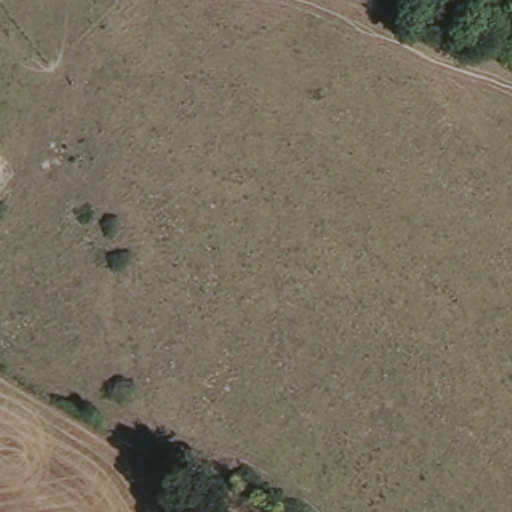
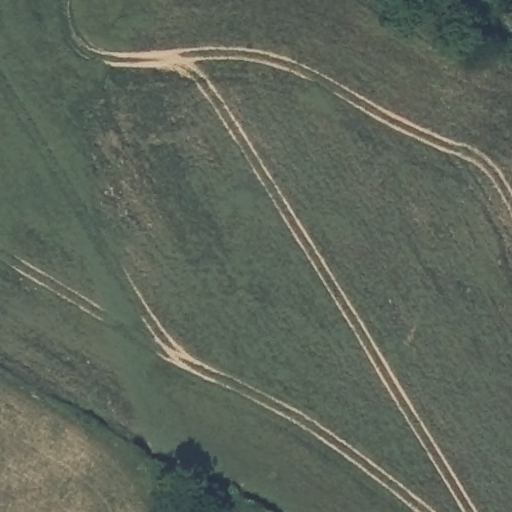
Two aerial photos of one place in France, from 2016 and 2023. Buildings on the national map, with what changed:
[]

